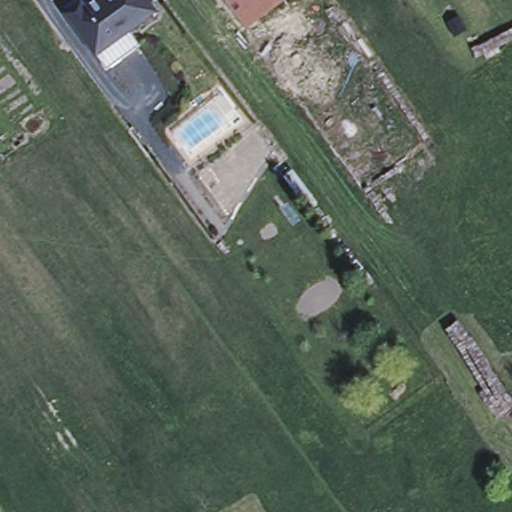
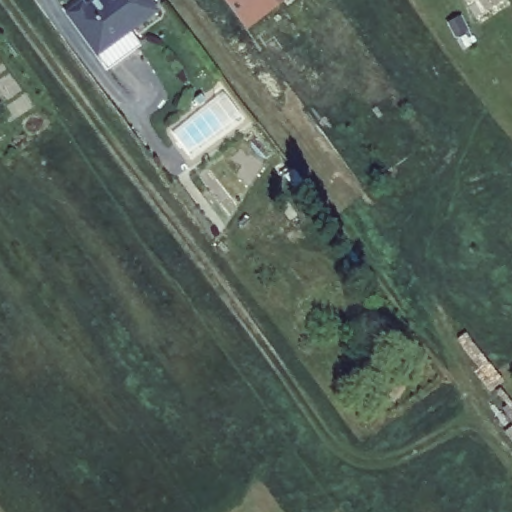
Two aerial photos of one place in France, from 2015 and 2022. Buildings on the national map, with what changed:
unchanged [(129,23),(140,38),(107,61),(68,7),(77,0),(85,0),(86,1),(87,0),(152,0),(155,5),(129,23)]
unchanged [(223,0),(288,0),(245,31),(223,0)]
unchanged [(240,119),(187,155),(170,131),(220,91),(240,119)]

